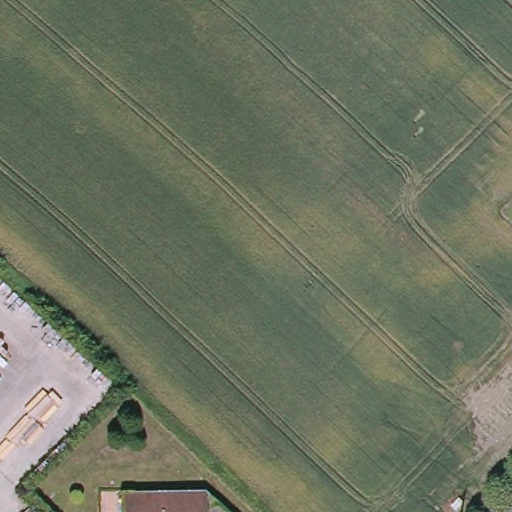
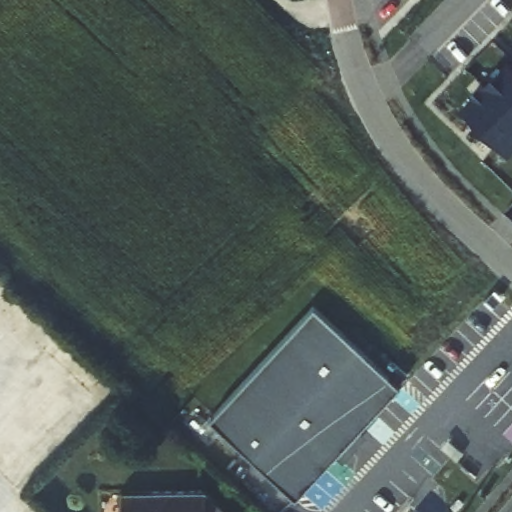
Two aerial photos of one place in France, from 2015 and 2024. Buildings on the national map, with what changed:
new [(464,108),(508,63),(512,67),(512,152),(510,154),(464,108)]
new [(397,386),(295,497),(212,420),(314,310),(397,386)]
unchanged [(230,512),(122,512),(122,489),(207,490),(230,512)]
unchanged [(463,502),(455,511),(450,506),(458,497),(463,502)]

